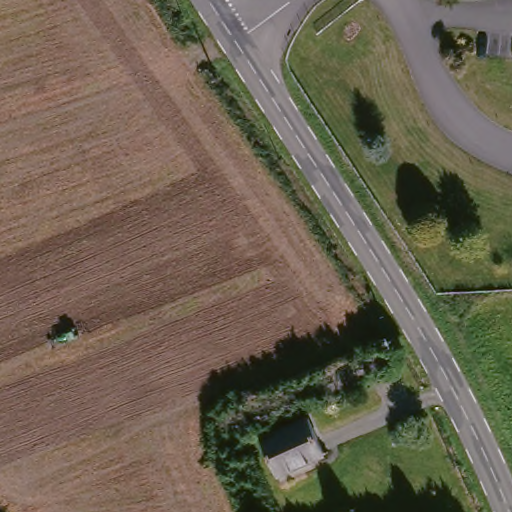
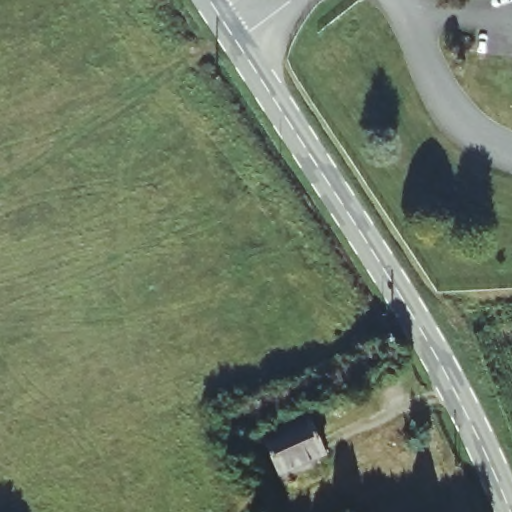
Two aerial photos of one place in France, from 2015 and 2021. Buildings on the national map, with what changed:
unchanged [(299,423),(316,461),(270,481),(254,444),(299,423)]

